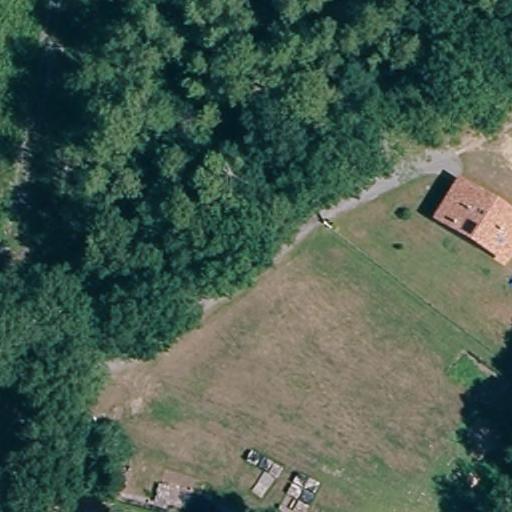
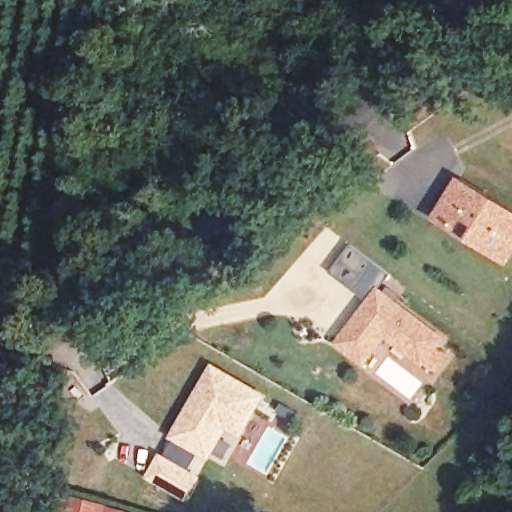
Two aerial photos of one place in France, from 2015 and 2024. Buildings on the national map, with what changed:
unchanged [(503,257),(491,249),(437,214),(462,178),(512,211),(512,244),(503,257)]
new [(450,339),(425,369),(389,341),(366,369),(336,344),(381,287),(450,339)]
new [(171,438),(212,363),(268,394),(244,439),(231,432),(212,461),(171,438)]
new [(189,503),(147,480),(162,453),(203,477),(189,503)]
new [(128,512),(73,512),(77,498),(128,512)]

